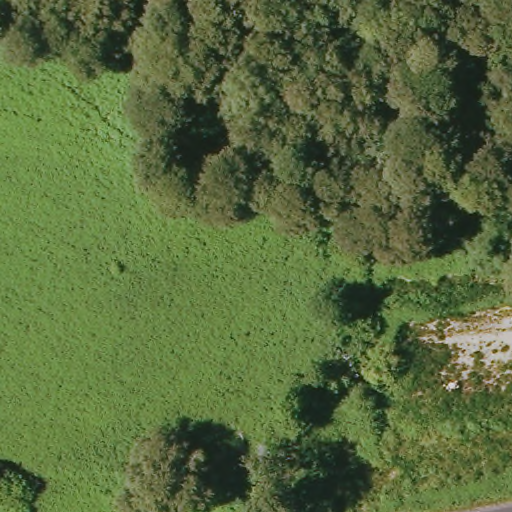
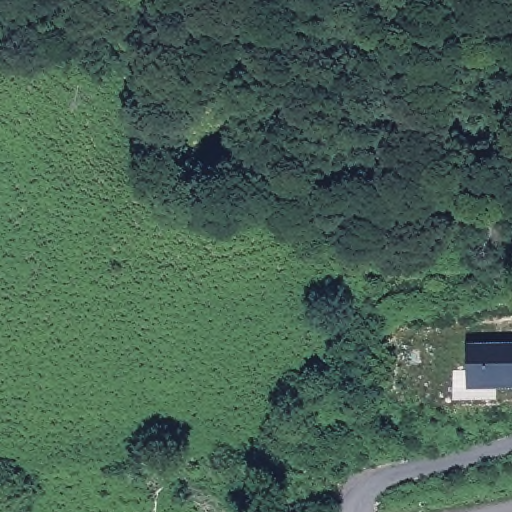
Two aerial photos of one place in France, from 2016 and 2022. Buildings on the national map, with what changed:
new [(468,343),(512,343),(512,387),(468,387),(468,343)]

